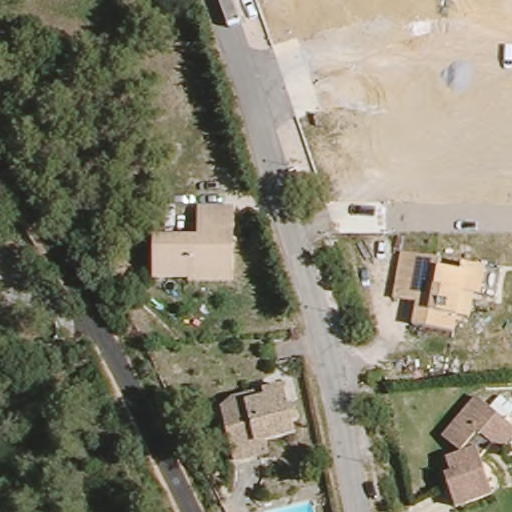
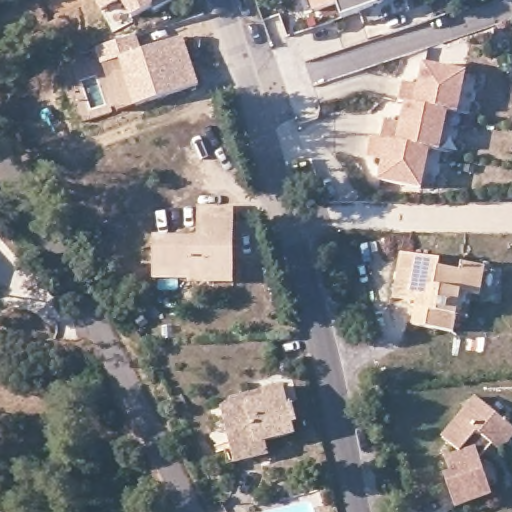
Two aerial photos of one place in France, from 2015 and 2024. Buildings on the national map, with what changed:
new [(130,21),(120,5),(102,13),(95,0),(172,0),(173,1),(130,21)]
new [(372,26),(367,11),(342,20),(338,6),(316,14),(311,0),(408,0),(412,11),(372,26)]
new [(136,33),(142,50),(119,59),(133,106),(107,113),(105,109),(90,53),(90,50),(136,33)]
new [(142,50),(183,38),(199,86),(133,106),(119,59),(142,50)]
new [(402,84),(419,88),(424,66),(465,75),(457,114),(447,112),(405,104),(398,102),(402,84)]
new [(383,121),(400,125),(405,104),(447,112),(439,152),(429,150),(379,140),(383,121)]
new [(370,138),(379,140),(429,150),(420,190),(379,181),(384,159),(366,156),(370,138)]
unchanged [(191,283),(192,279),(155,279),(156,241),(199,241),(200,212),(235,211),(235,233),(235,248),(236,273),(236,283),(191,283)]
unchanged [(447,263),(446,271),(465,274),(467,267),(491,271),(487,299),(479,298),(475,322),(463,320),(460,335),(418,328),(420,307),(402,304),(409,257),(447,263)]
unchanged [(284,387),(291,409),(295,408),(299,423),(295,425),(297,435),(268,443),(271,454),(236,463),(220,403),(284,387)]
unchanged [(480,450),(495,493),(460,505),(450,474),(457,472),(453,458),(470,452),(449,436),(483,396),(510,419),(512,420),(512,444),(507,451),(493,440),(491,438),(480,450)]

